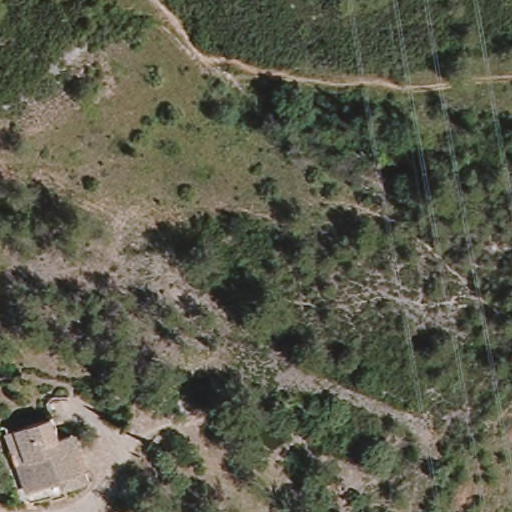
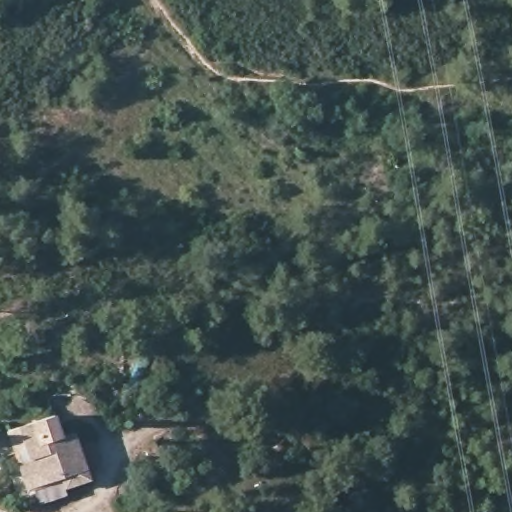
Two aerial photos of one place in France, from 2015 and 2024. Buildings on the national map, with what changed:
unchanged [(35,511),(28,491),(8,432),(55,416),(62,437),(75,433),(91,481),(63,491),(67,500),(35,511)]

